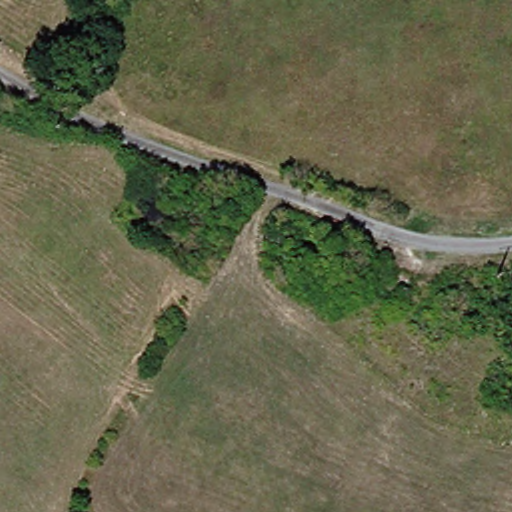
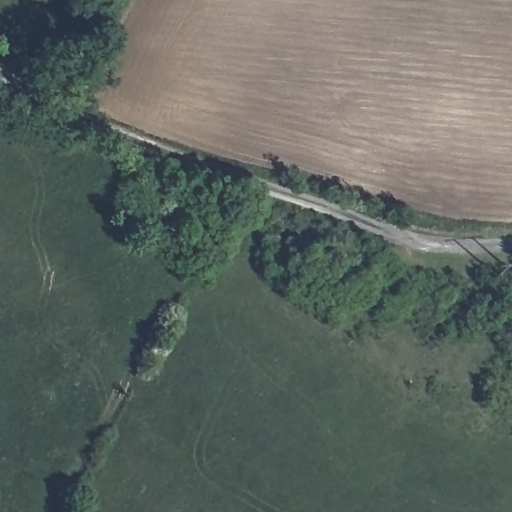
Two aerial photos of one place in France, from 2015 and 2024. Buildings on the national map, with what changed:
[]

